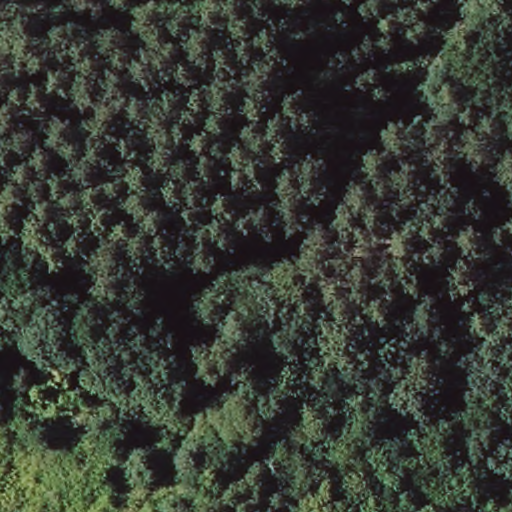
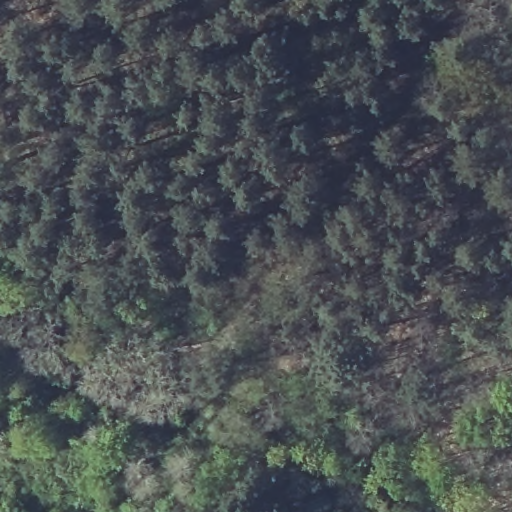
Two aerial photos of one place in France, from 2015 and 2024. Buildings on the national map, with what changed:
unchanged [(39,386),(53,368),(70,382),(55,400),(39,386)]

